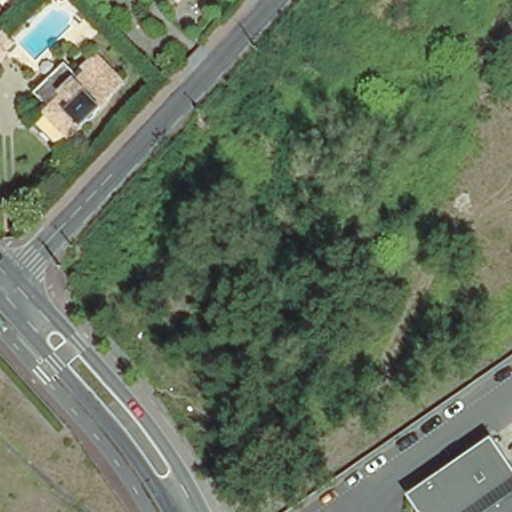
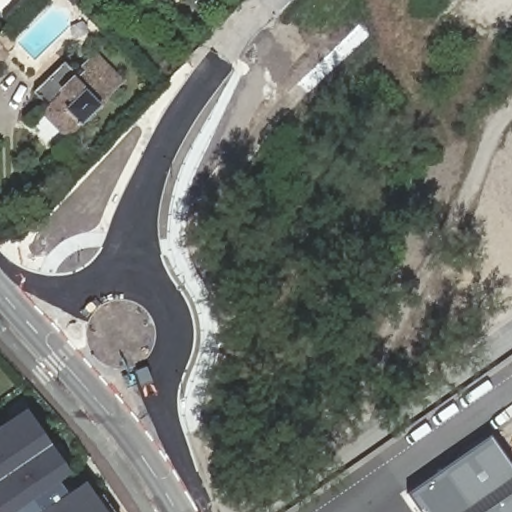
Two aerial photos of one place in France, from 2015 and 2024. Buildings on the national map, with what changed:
unchanged [(42,114),(47,109),(37,99),(68,67),(81,77),(99,58),(128,86),(73,144),(42,114)]
unchanged [(1,60),(0,61),(0,59),(1,60)]
new [(25,408),(27,412),(28,411),(45,435),(51,445),(53,447),(65,465),(72,475),(59,483),(68,497),(86,484),(97,500),(103,496),(114,512),(0,512),(0,425),(25,408)]
unchanged [(405,495),(485,433),(512,471),(512,512),(416,512),(414,508),(405,495)]

